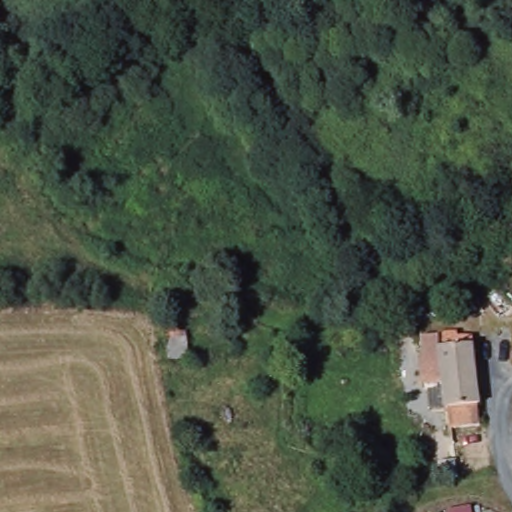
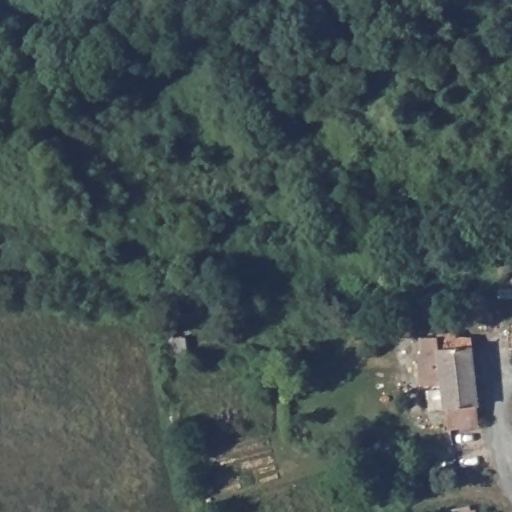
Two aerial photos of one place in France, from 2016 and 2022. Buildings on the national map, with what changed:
unchanged [(479,395),(477,396),(479,416),(448,419),(446,399),(445,399),(441,366),(423,368),(421,327),(427,327),(456,328),(457,337),(472,335),(479,395)]

